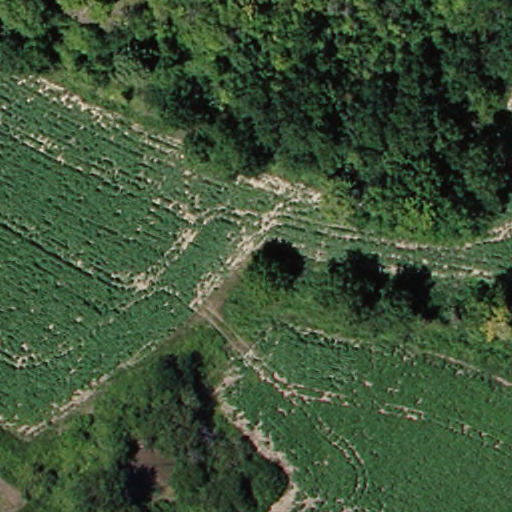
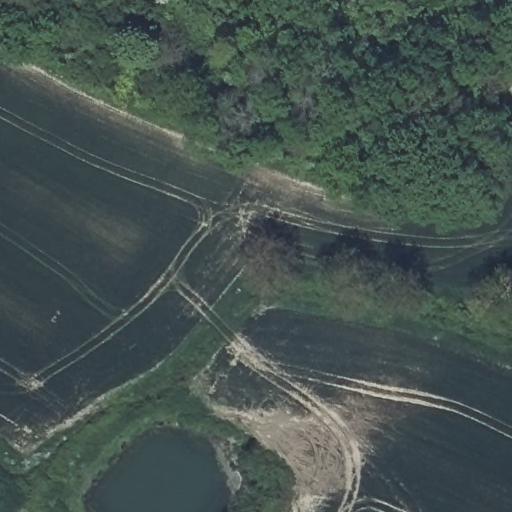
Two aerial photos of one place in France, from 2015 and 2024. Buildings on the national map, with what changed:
[]

